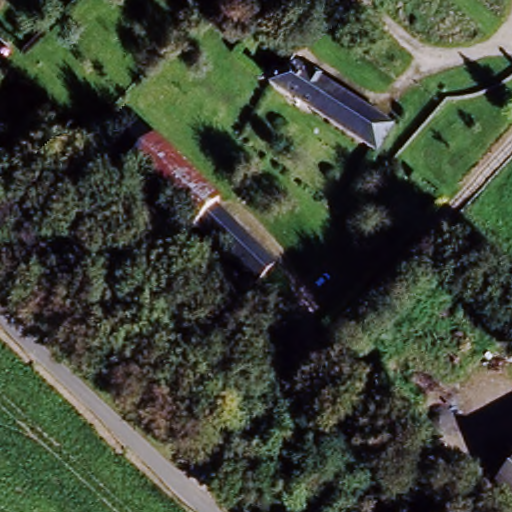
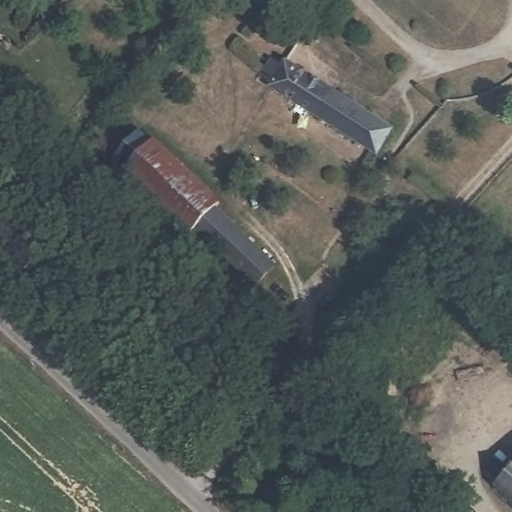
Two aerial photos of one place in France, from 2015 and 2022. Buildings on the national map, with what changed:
unchanged [(332,89),(333,90),(315,111),(283,79),(297,54),(332,89)]
unchanged [(333,90),(385,142),(365,164),(315,111),(333,90)]
unchanged [(206,207),(197,215),(252,270),(240,281),(186,227),(181,233),(108,163),(132,136),(206,207)]
unchanged [(512,458),(512,494),(495,477),(512,458)]

